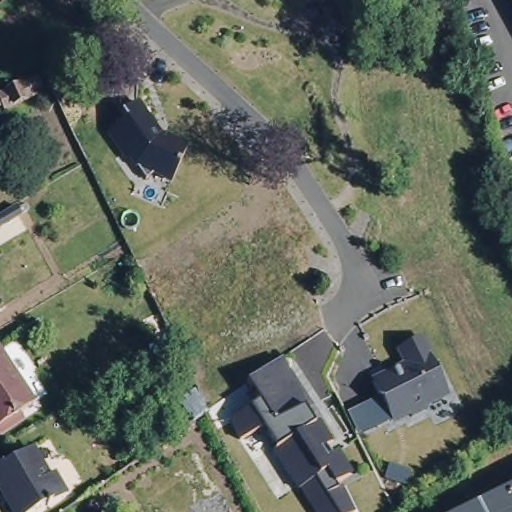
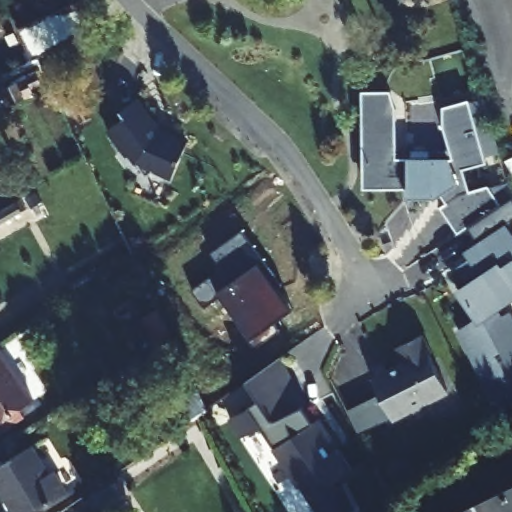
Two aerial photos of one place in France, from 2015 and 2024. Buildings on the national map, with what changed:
new [(17,29),(80,0),(81,0),(96,31),(32,61),(17,29)]
unchanged [(41,83),(30,88),(33,93),(3,106),(1,102),(0,102),(0,92),(37,76),(41,83)]
unchanged [(153,121),(187,136),(166,181),(128,163),(98,118),(135,93),(153,121)]
new [(437,195),(430,200),(402,201),(402,193),(384,193),(361,193),(358,193),(357,165),(357,94),(385,94),(391,110),(392,161),(428,160),(428,166),(447,160),(438,128),(437,109),(463,102),(467,116),(482,112),(495,154),(480,158),(481,166),(458,172),(464,193),(483,188),(495,207),(460,230),(450,237),(432,210),(442,204),(438,206),(433,198),(437,195)]
new [(508,199),(512,208),(512,217),(501,224),(512,240),(512,241),(511,242),(512,243),(512,259),(509,261),(512,266),(512,293),(489,309),(495,318),(505,313),(512,328),(512,408),(503,412),(495,397),(490,399),(482,384),(486,382),(483,375),(481,376),(475,363),(476,362),(473,355),(469,357),(457,333),(473,321),(455,294),(465,286),(455,271),(466,263),(461,255),(472,248),(460,230),(495,207),(508,199)]
new [(265,260),(260,262),(293,308),(253,337),(221,295),(206,306),(192,288),(224,266),(212,251),(243,229),(265,260)]
unchanged [(427,332),(437,349),(429,355),(450,395),(394,423),(370,374),(397,360),(394,348),(427,332)]
unchanged [(1,345),(37,401),(0,424),(0,346),(1,345)]
unchanged [(308,407),(307,408),(317,423),(321,420),(336,441),(330,445),(335,453),(338,451),(355,474),(341,483),(343,487),(347,484),(364,508),(356,512),(323,512),(305,486),(303,488),(276,450),(278,449),(265,429),(243,440),(232,420),(252,410),(251,408),(260,402),(247,383),(282,359),(308,407)]
new [(356,434),(345,412),(377,396),(388,418),(356,434)]
unchanged [(0,491),(0,463),(3,461),(5,464),(33,447),(50,475),(56,472),(70,495),(49,508),(47,506),(38,512),(16,512),(9,501),(11,499),(5,488),(0,491)]
unchanged [(512,512),(456,512),(512,484),(512,512)]

